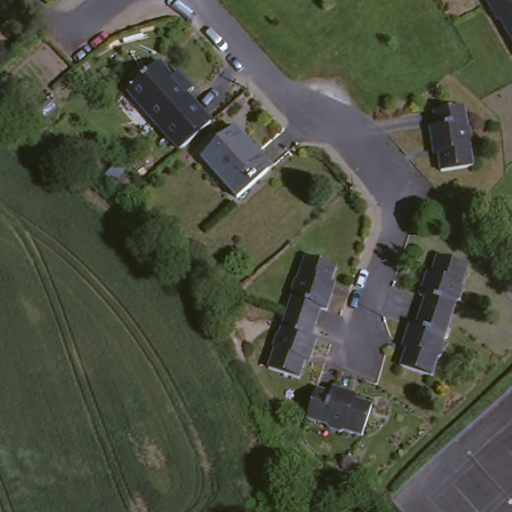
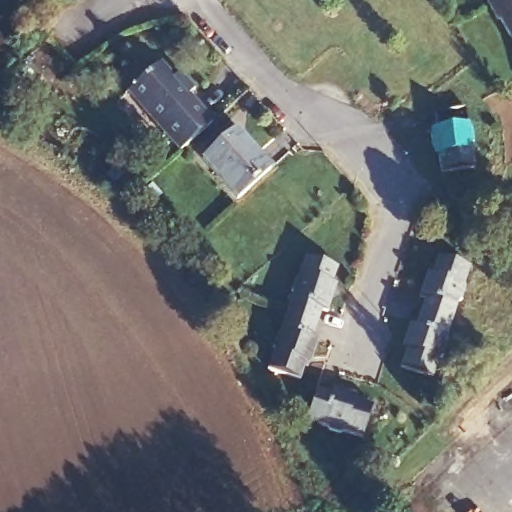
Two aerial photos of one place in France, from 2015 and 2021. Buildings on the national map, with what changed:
unchanged [(490,0),(512,0),(512,40),(495,10),(490,0)]
unchanged [(149,111),(152,108),(136,90),(165,64),(195,97),(163,126),(149,111)]
unchanged [(470,108),(478,164),(444,169),(441,147),(433,149),(430,127),(438,126),(436,113),(470,108)]
unchanged [(238,126),(275,166),(242,196),(203,158),(238,126)]
unchanged [(306,253),(338,264),(330,289),(335,291),(328,310),(322,308),(318,323),(285,315),(306,253)]
unchanged [(425,297),(420,295),(428,274),(432,275),(439,255),(471,266),(454,320),(421,309),(425,297)]
unchanged [(454,320),(434,380),(402,370),(409,346),(404,345),(410,325),(415,326),(421,309),(454,320)]
unchanged [(285,315),(318,323),(313,339),(316,340),(312,356),(306,355),(300,377),(268,366),(285,315)]
unchanged [(336,395),(338,386),(357,393),(355,400),(375,406),(366,435),(313,417),(322,390),(336,395)]

